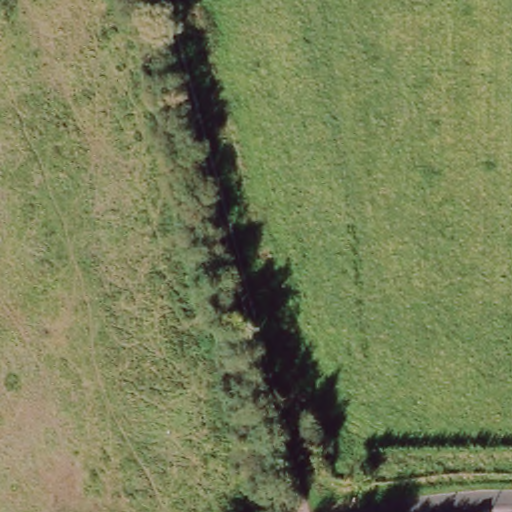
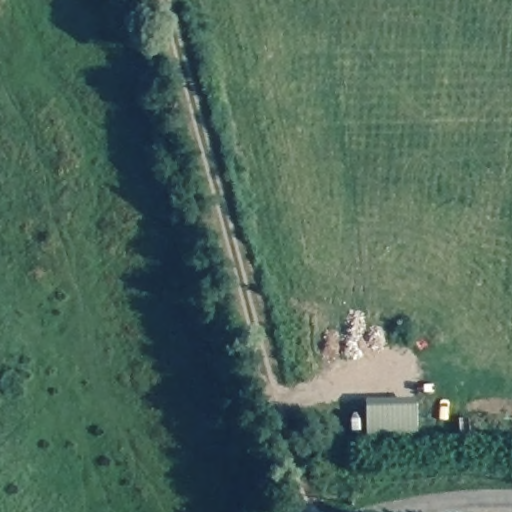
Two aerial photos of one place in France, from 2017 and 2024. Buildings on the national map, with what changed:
new [(414,398),(415,436),(367,437),(365,399),(414,398)]

